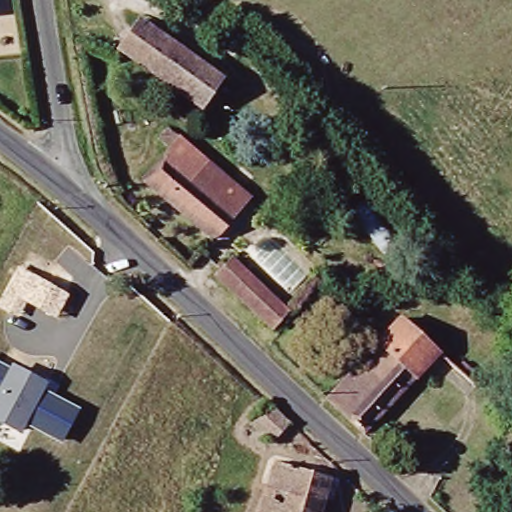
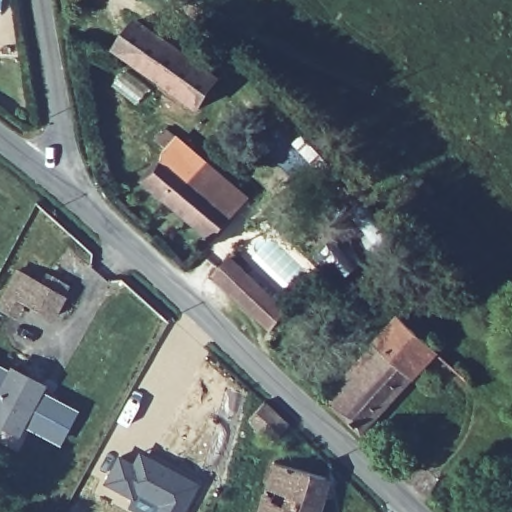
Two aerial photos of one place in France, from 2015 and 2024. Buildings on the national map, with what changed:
unchanged [(203,109),(121,46),(142,19),(222,81),(203,109)]
unchanged [(248,203),(242,208),(216,237),(151,177),(182,141),(248,203)]
new [(365,198),(399,238),(384,251),(349,212),(365,198)]
unchanged [(272,327),(220,278),(236,260),(288,309),(272,327)]
unchanged [(20,297),(16,306),(4,299),(18,272),(61,294),(52,313),(20,297)]
unchanged [(363,433),(331,400),(401,316),(439,349),(363,433)]
unchanged [(80,409),(61,444),(25,426),(20,434),(0,423),(0,362),(10,367),(11,364),(47,383),(44,390),(80,409)]
unchanged [(293,425),(286,444),(258,416),(269,396),(293,425)]
new [(116,454),(132,460),(138,449),(200,482),(184,512),(138,512),(127,507),(131,499),(101,483),(116,454)]
unchanged [(329,482),(319,512),(257,512),(275,463),(329,482)]

